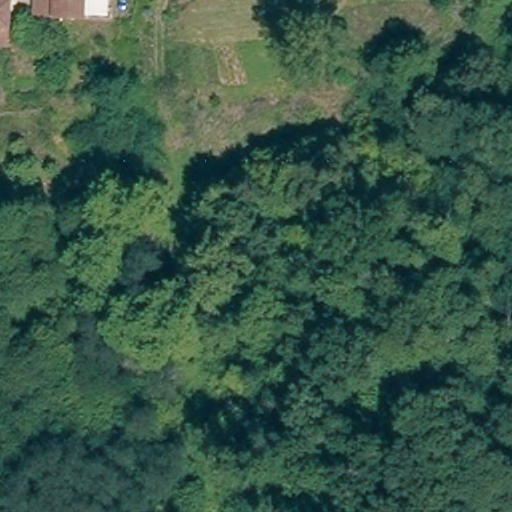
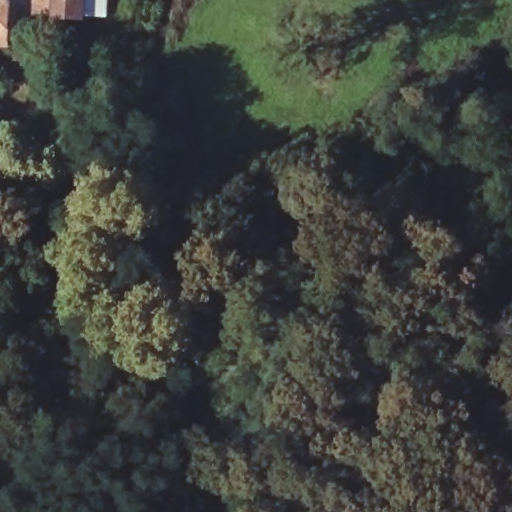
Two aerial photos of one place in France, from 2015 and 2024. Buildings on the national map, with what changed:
unchanged [(105,16),(80,16),(80,20),(54,18),(35,17),(35,0),(105,0),(105,16)]
unchanged [(0,48),(0,2),(9,3),(5,30),(2,48),(0,48)]

